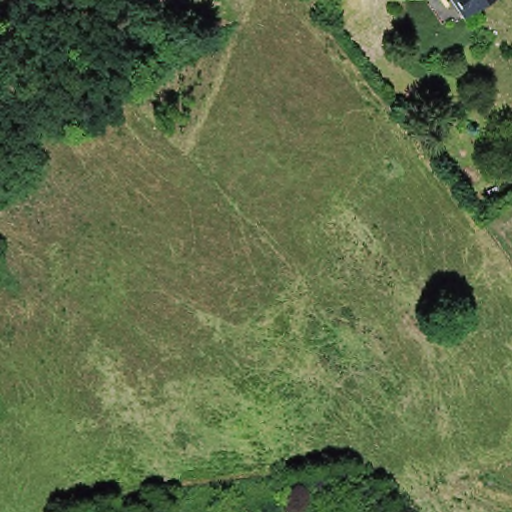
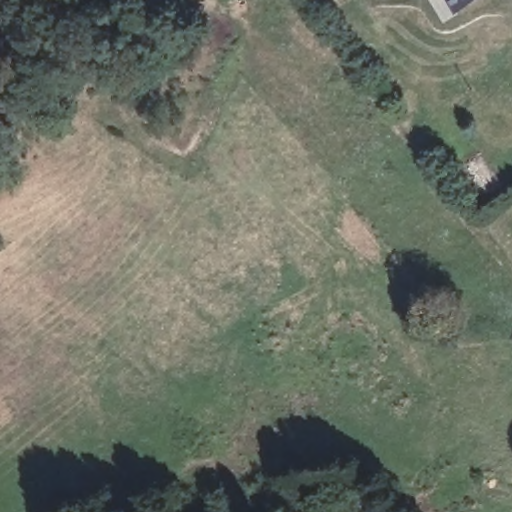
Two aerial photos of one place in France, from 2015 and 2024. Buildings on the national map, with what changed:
unchanged [(462,8),(456,0),(472,0),(462,8)]

